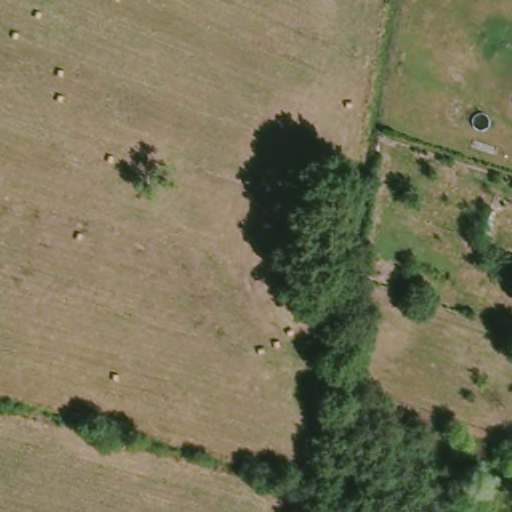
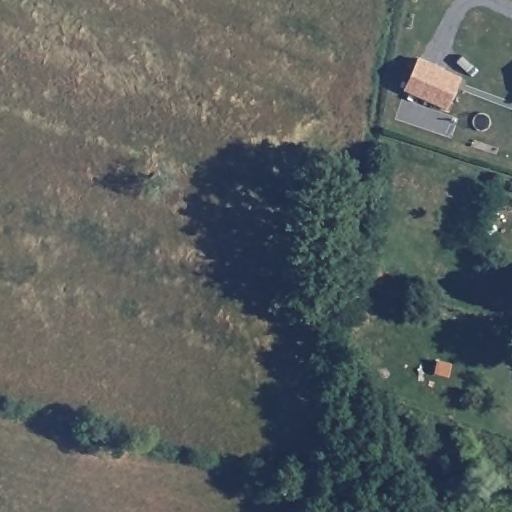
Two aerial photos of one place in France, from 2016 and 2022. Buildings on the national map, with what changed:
new [(403,90),(419,59),(461,78),(448,110),(403,90)]

